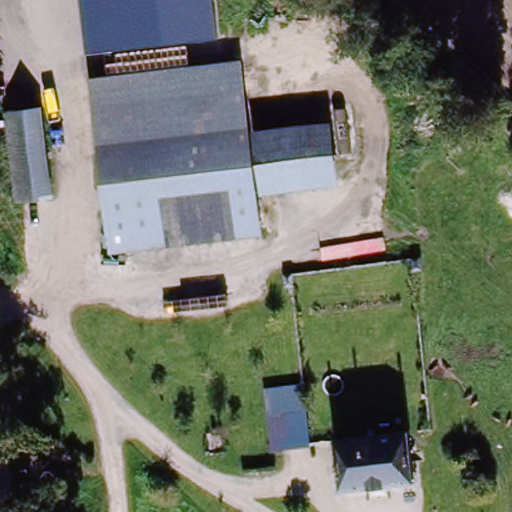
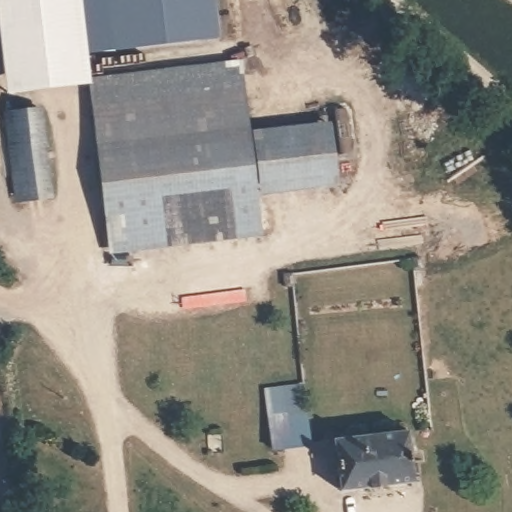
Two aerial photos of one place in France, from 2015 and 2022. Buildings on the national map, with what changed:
new [(87,56),(90,81),(8,90),(0,19),(0,0),(81,0),(87,56)]
unchanged [(81,0),(214,0),(220,41),(87,56),(81,0)]
unchanged [(263,247),(113,262),(95,74),(245,59),(252,132),(259,195),(263,247)]
unchanged [(19,198),(9,112),(35,110),(45,194),(19,198)]
unchanged [(339,187),(259,195),(252,132),(334,124),(339,187)]
demolished [(421,260),(417,242),(436,240),(438,257),(421,260)]
demolished [(295,276),(293,262),(307,260),(310,273),(295,276)]
unchanged [(302,385),(312,450),(272,455),(262,391),(302,385)]
unchanged [(417,475),(342,482),(337,440),(413,432),(417,475)]

